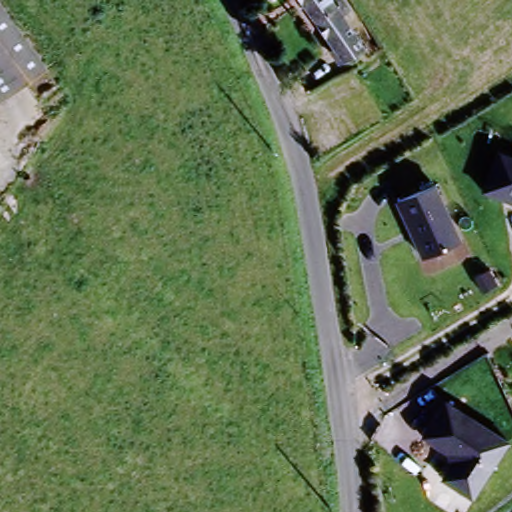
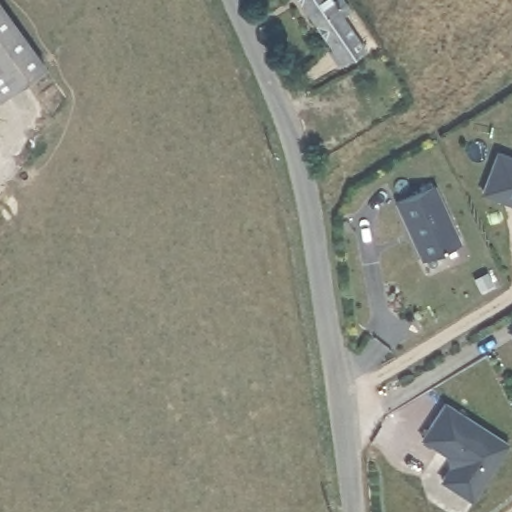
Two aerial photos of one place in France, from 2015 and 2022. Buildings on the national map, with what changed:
unchanged [(0,0),(1,0),(41,67),(0,92),(0,0)]
unchanged [(332,66),(298,0),(324,0),(353,56),(332,66)]
unchanged [(512,151),(512,199),(483,188),(499,146),(512,151)]
unchanged [(466,237),(426,257),(398,198),(438,180),(466,237)]
unchanged [(511,441),(478,496),(447,481),(460,456),(427,440),(450,400),(511,441)]

